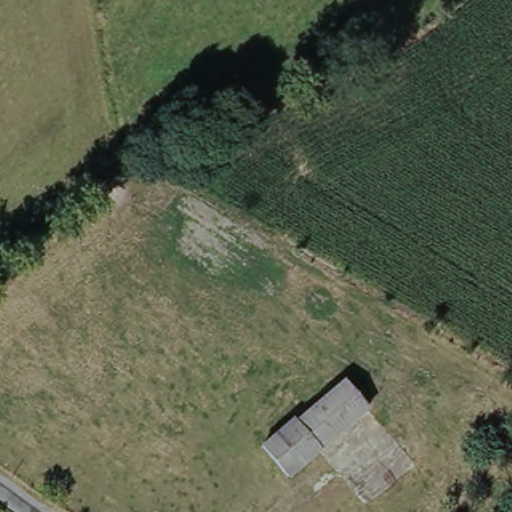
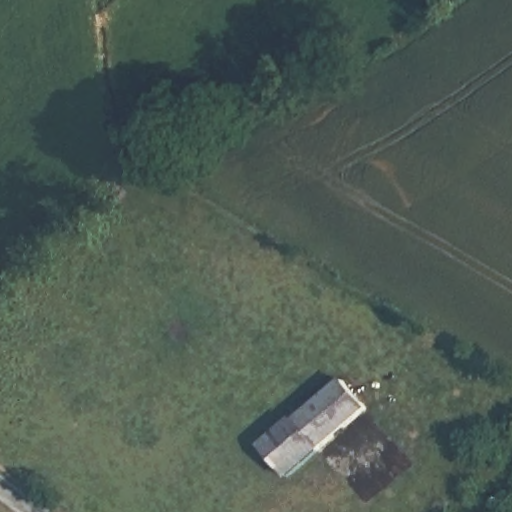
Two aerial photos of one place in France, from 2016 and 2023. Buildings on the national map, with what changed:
unchanged [(366,412),(289,479),(263,449),(294,422),(296,426),(343,384),(366,412)]

